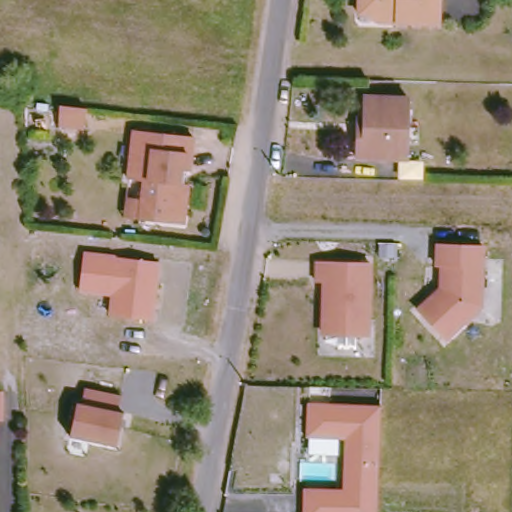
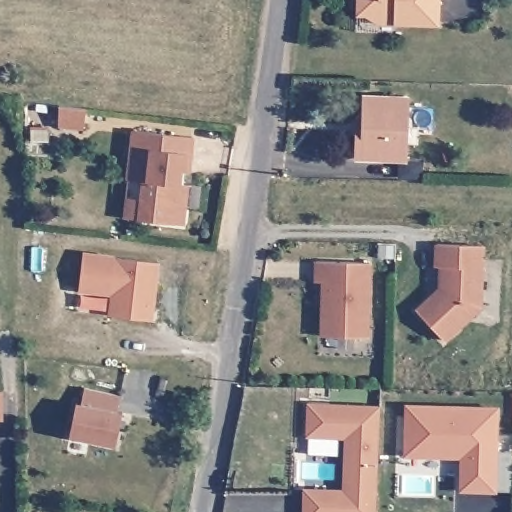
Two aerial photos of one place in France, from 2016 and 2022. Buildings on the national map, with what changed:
unchanged [(396,24),(397,15),(357,14),(357,0),(436,0),(435,25),(396,24)]
unchanged [(351,117),(360,118),(360,94),(402,95),(401,124),(412,125),(412,143),(400,142),(400,158),(358,157),(350,157),(351,117)]
unchanged [(62,128),(62,108),(88,110),(87,131),(62,128)]
unchanged [(140,199),(142,180),(125,179),(130,131),(190,138),(187,170),(177,170),(176,185),(185,186),(182,223),(148,220),(138,219),(140,199)]
unchanged [(481,250),(481,254),(482,310),(445,343),(418,314),(442,292),(441,269),(434,270),(435,252),(435,248),(481,250)]
unchanged [(155,322),(110,317),(112,300),(81,296),(85,253),(162,263),(155,322)]
unchanged [(374,263),(372,320),(367,320),(366,338),(328,336),(330,306),(327,304),(328,282),(320,282),(321,261),(374,263)]
unchanged [(6,391),(6,392),(7,420),(0,420),(0,391),(6,391)]
unchanged [(120,398),(117,414),(122,414),(119,448),(73,443),(77,409),(82,410),(83,394),(120,398)]
unchanged [(305,512),(306,488),(345,490),(347,439),(308,437),(310,402),(383,406),(378,512),(305,512)]
new [(497,493),(459,492),(458,459),(402,457),(404,405),(498,408),(497,493)]

